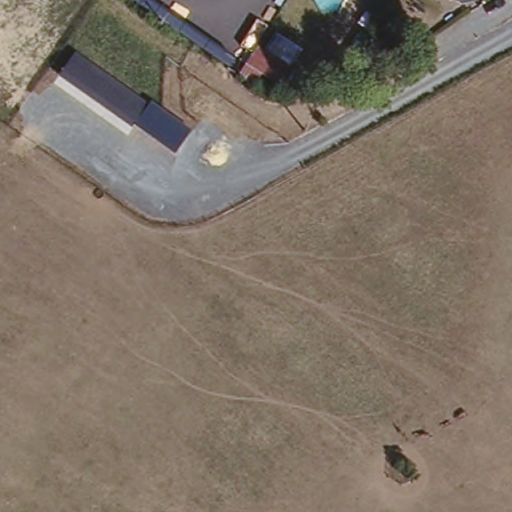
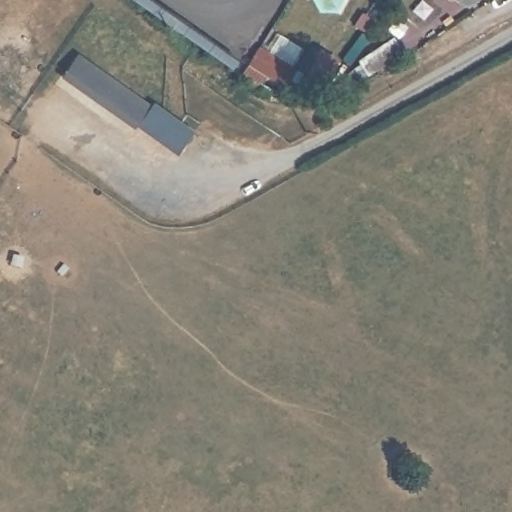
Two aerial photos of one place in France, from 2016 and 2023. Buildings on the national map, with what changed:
unchanged [(229,68),(130,0),(158,0),(238,55),(229,68)]
unchanged [(300,64),(291,79),(270,64),(260,76),(243,73),(242,72),(263,40),(300,64)]
unchanged [(151,105),(154,103),(192,130),(176,154),(136,128),(134,130),(61,79),(79,53),(151,105)]

